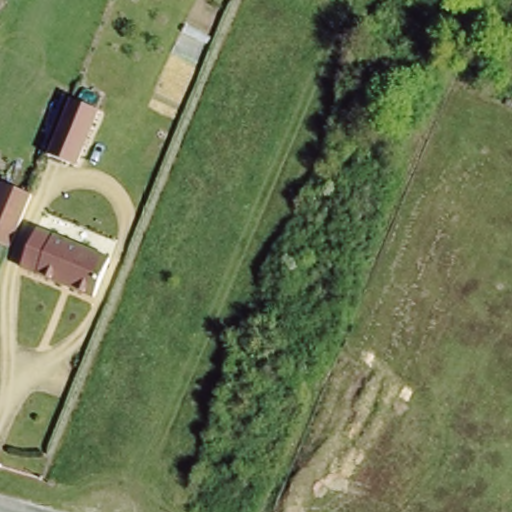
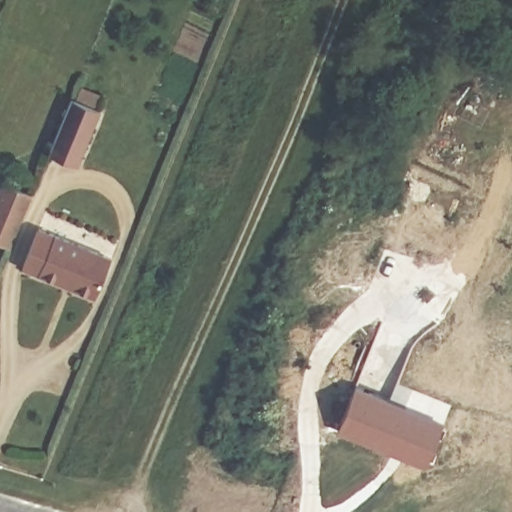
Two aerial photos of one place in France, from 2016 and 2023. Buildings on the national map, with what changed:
unchanged [(70,97),(100,108),(76,165),(46,154),(70,97)]
unchanged [(30,196),(9,248),(0,245),(0,189),(2,183),(30,196)]
unchanged [(106,260),(95,298),(22,266),(37,229),(106,260)]
new [(427,468),(336,432),(355,387),(445,422),(427,468)]

